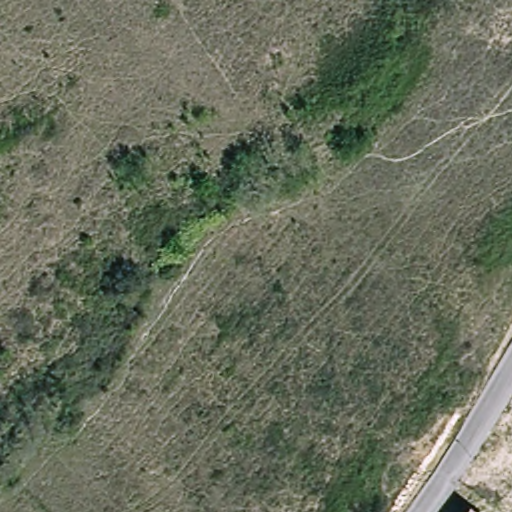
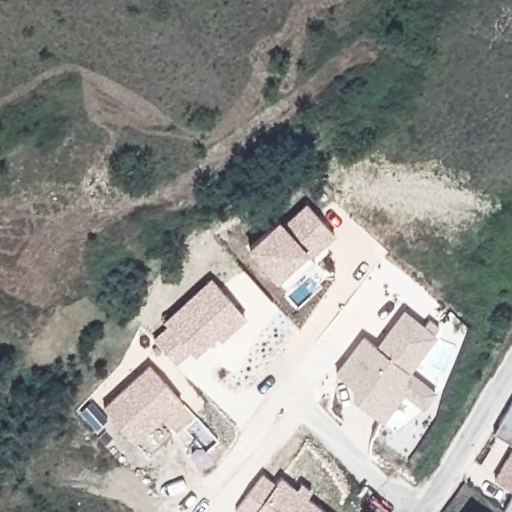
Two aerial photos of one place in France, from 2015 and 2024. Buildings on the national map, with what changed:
new [(306,203),(334,233),(309,251),(276,280),(248,249),(280,219),(306,203)]
new [(217,335),(195,356),(190,350),(176,364),(153,339),(167,326),(163,322),(212,278),(247,316),(221,340),(217,335)]
new [(436,335),(411,369),(436,389),(424,406),(404,392),(383,419),(352,397),(352,386),(336,372),(364,336),(376,346),(404,309),(436,335)]
new [(135,443),(103,408),(149,364),(182,400),(135,443)]
new [(494,432),(512,401),(512,443),(494,432)]
new [(493,477),(512,446),(512,488),(493,477)]
new [(277,483),(282,476),(297,488),(302,481),(312,489),(307,495),(329,512),(240,512),(235,508),(263,472),(277,483)]
new [(503,508),(512,493),(512,512),(509,512),(503,508)]
unchanged [(473,510),(475,512),(470,512),(473,510)]

